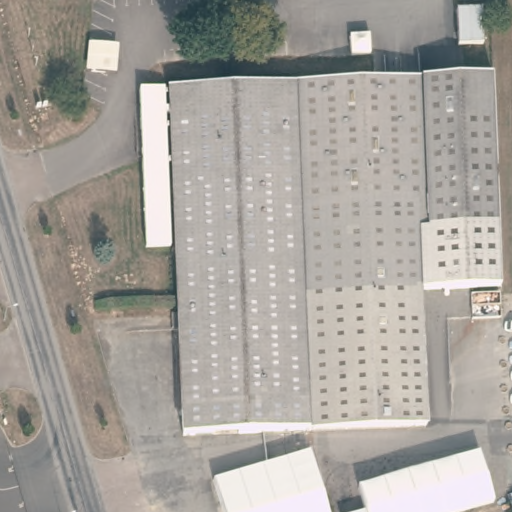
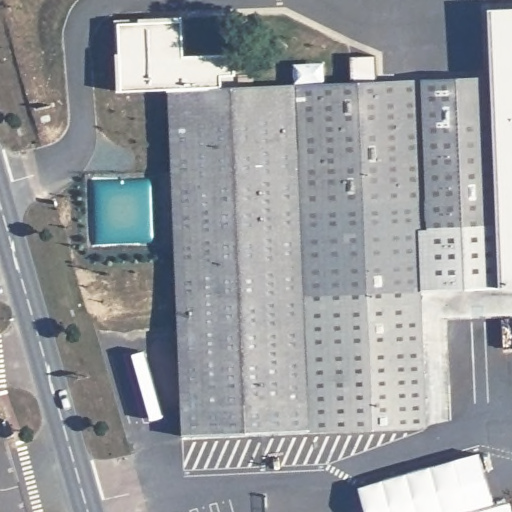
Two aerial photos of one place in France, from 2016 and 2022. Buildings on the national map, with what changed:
new [(496,169),(492,85),(492,76),(487,8),(512,7),(512,287),(501,287),(496,169)]
new [(220,75),(221,87),(169,89),(169,90),(116,93),(113,22),(138,20),(138,17),(182,16),(183,54),(236,53),(236,74),(220,75)]
unchanged [(496,169),(501,287),(419,290),(425,426),(287,431),(183,434),(170,116),(169,114),(169,109),(169,89),(366,81),(492,76),(496,169)]
demolished [(329,512),(303,512),(286,457),(312,448),(329,512)]
unchanged [(492,507),(472,512),(366,512),(358,487),(481,453),(492,507)]
demolished [(303,512),(222,512),(212,480),(286,457),(303,512)]

